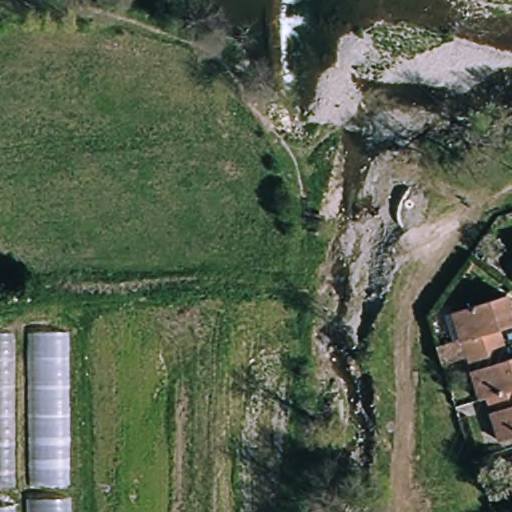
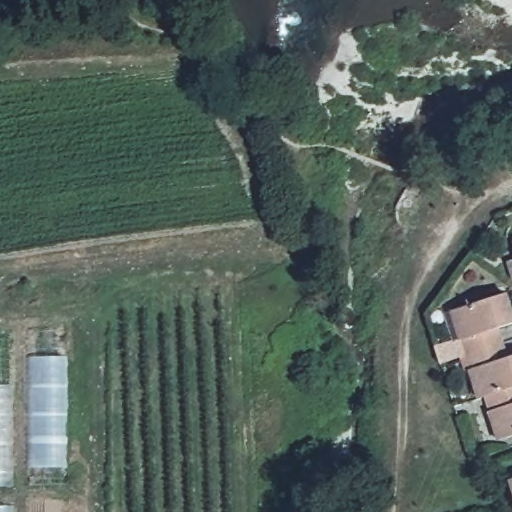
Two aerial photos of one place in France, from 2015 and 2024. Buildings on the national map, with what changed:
unchanged [(512,323),(498,327),(502,342),(467,353),(452,309),(507,293),(512,307),(512,323)]
unchanged [(0,512),(0,332),(71,329),(74,512),(0,512)]
unchanged [(480,395),(467,353),(502,342),(508,356),(512,355),(512,384),(488,392),(480,395)]
unchanged [(512,432),(507,434),(504,435),(488,392),(512,384),(512,432)]
unchanged [(512,490),(508,479),(512,478),(512,490)]

